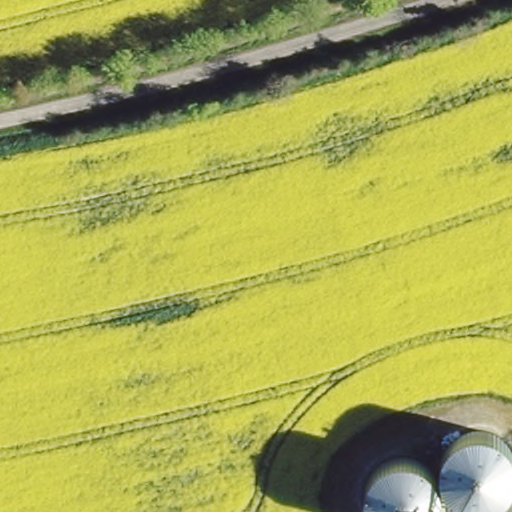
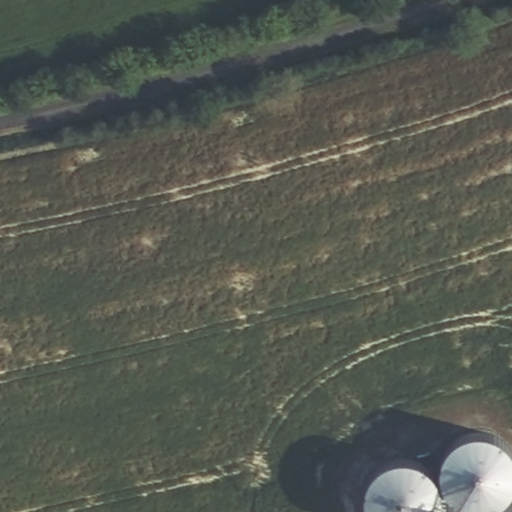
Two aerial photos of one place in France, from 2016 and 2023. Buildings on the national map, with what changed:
unchanged [(408,456),(418,458),(425,463),(433,470),(439,475),(439,471),(440,462),(440,455),(444,448),(447,443),(452,438),(462,433),(472,431),(480,430),(492,432),(501,437),(509,445),(512,451),(512,496),(512,497),(506,501),(500,505),(492,507),(482,509),(472,508),(465,508),(459,505),(450,500),(444,495),(444,503),(441,510),(440,512),(369,512),(369,511),(366,505),(365,495),(365,488),(366,483),(368,477),(371,471),(376,466),(380,463),(388,459),(398,456),(408,456)]

